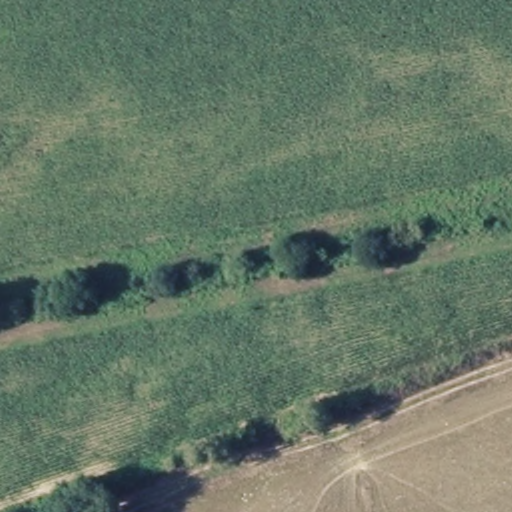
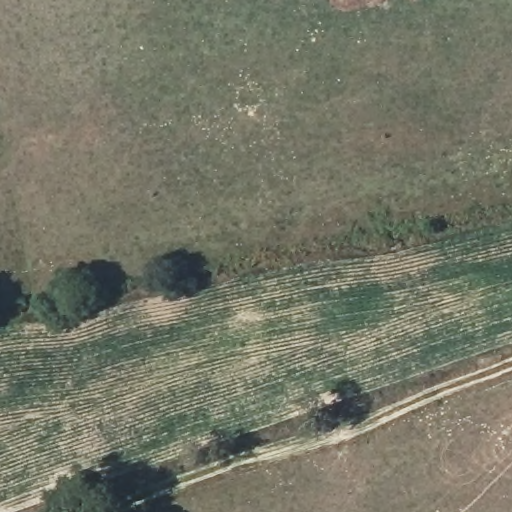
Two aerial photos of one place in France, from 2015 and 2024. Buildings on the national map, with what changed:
[]

